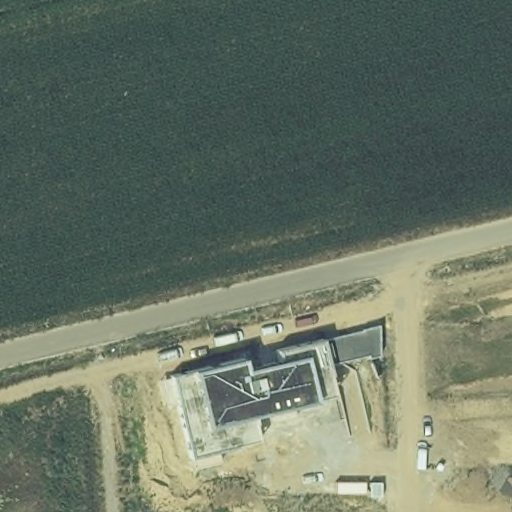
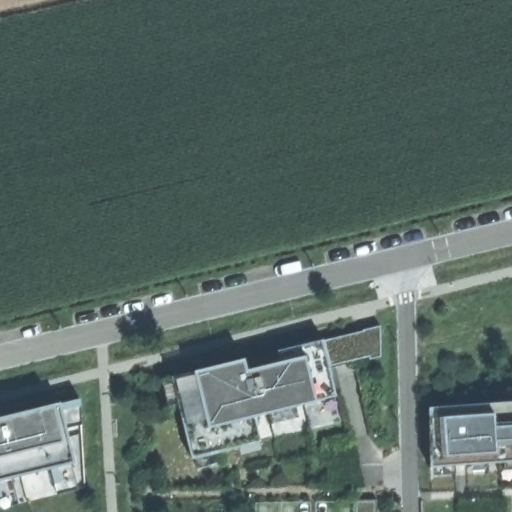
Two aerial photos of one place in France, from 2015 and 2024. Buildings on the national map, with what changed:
unchanged [(172,379),(172,377),(380,326),(381,356),(369,357),(330,366),(331,369),(336,368),(342,391),(335,392),(331,375),(320,378),(325,400),(295,407),(296,418),(273,423),(270,413),(257,416),(261,441),(240,445),(235,430),(238,448),(220,452),(222,463),(198,468),(195,459),(192,458),(178,404),(168,406),(162,382),(172,379)]
new [(60,402),(80,400),(82,424),(67,428),(75,462),(72,464),(77,489),(58,494),(51,469),(13,478),(18,503),(0,508),(0,417),(60,402)]
new [(512,469),(505,470),(504,462),(488,463),(488,473),(472,474),(471,465),(456,466),(455,473),(434,475),(433,467),(430,467),(429,408),(512,402),(512,469)]
new [(351,439),(362,485),(336,486),(326,445),(351,439)]
unchanged [(316,501),(377,500),(377,512),(316,512),(316,501)]
new [(311,502),(311,512),(256,512),(256,503),(311,502)]
new [(503,503),(503,512),(460,512),(460,504),(503,503)]

